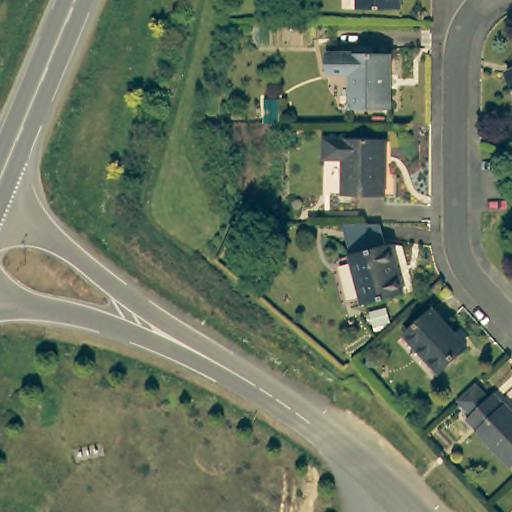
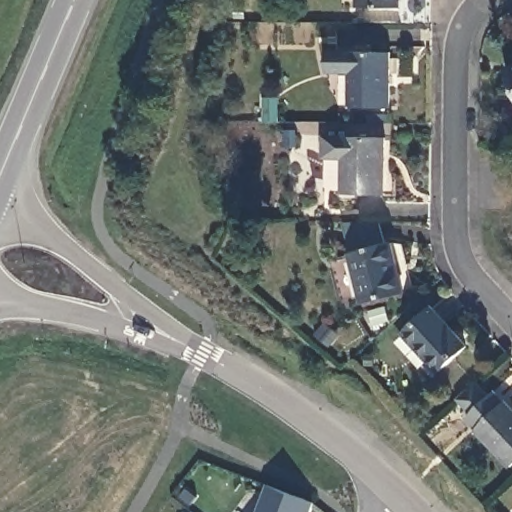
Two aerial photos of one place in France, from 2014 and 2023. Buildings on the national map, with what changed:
unchanged [(405,13),(362,13),(363,0),(406,0),(405,13)]
unchanged [(391,57),(390,112),(350,112),(350,76),(329,76),(329,56),(391,57)]
unchanged [(512,88),(506,77),(512,74),(512,88)]
unchanged [(390,142),(390,199),(348,198),(348,162),(328,162),(327,141),(390,142)]
unchanged [(349,257),(391,247),(403,250),(414,295),(404,297),(363,307),(349,257)]
unchanged [(432,308),(467,346),(439,371),(404,334),(432,308)]
unchanged [(512,417),(512,472),(475,434),(476,433),(466,422),(493,397),(512,417)]
new [(310,505),(313,507),(311,512),(258,512),(267,488),(310,505)]

